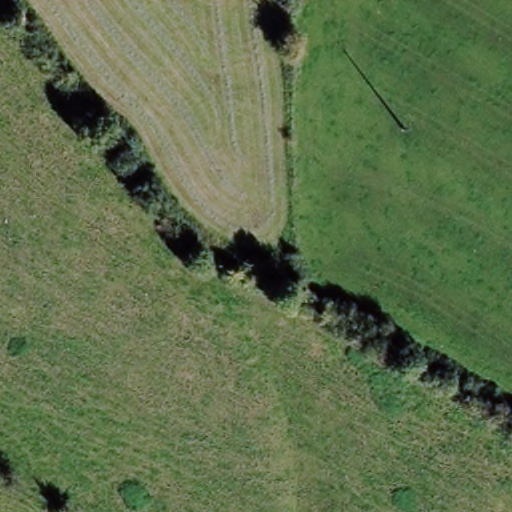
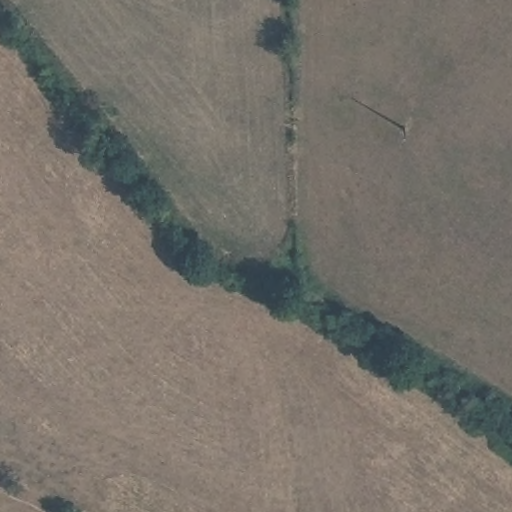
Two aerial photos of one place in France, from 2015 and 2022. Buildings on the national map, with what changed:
[]

